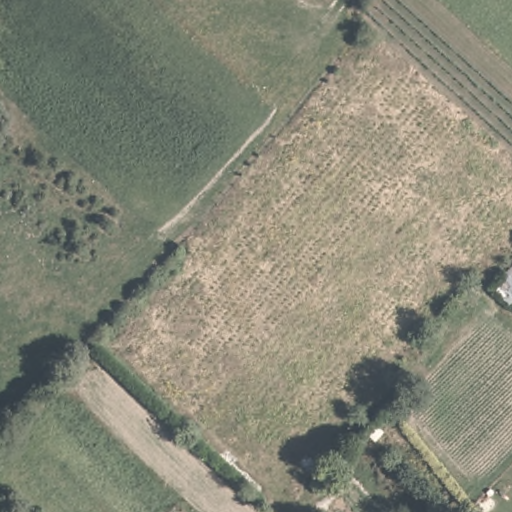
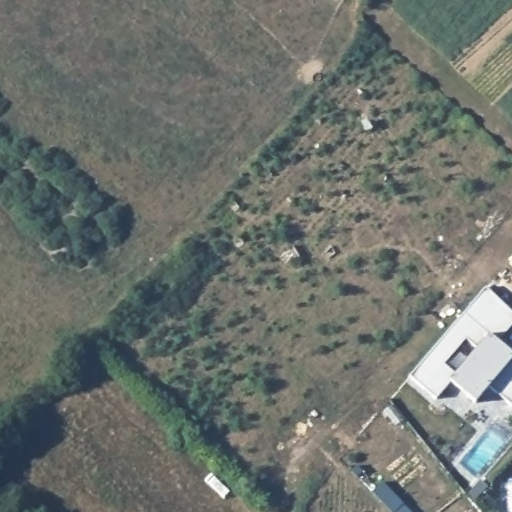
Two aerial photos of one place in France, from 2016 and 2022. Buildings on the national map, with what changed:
new [(512,308),(512,331),(500,344),(512,354),(512,408),(490,388),(476,404),(452,382),(436,399),(410,375),(490,288),(512,308)]

